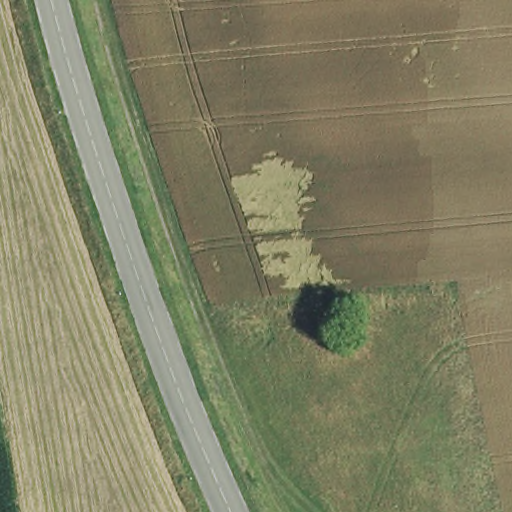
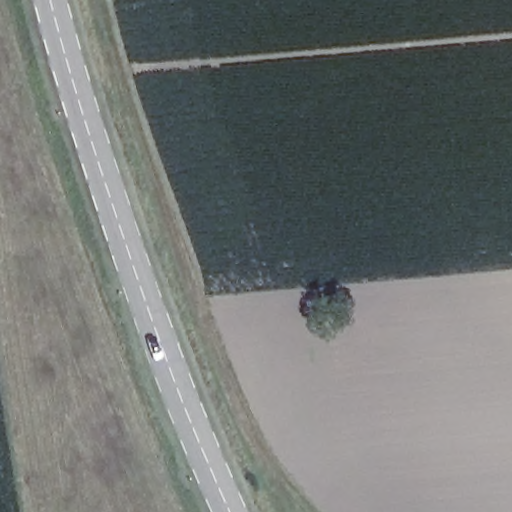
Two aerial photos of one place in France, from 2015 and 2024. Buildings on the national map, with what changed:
[]

